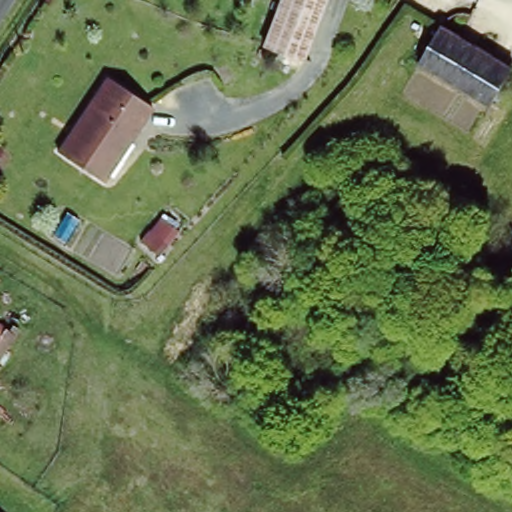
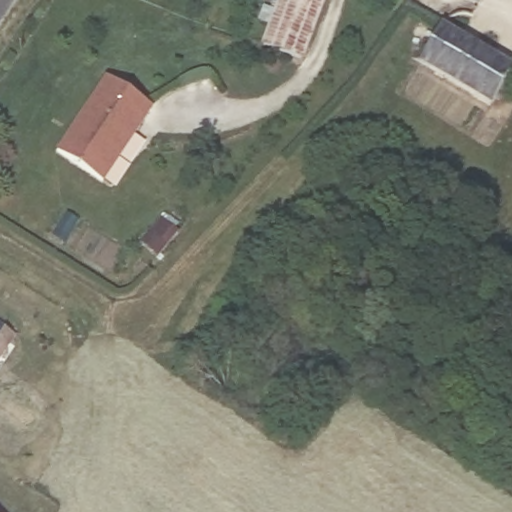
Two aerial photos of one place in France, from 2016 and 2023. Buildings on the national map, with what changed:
unchanged [(258,49),(276,0),(320,0),(297,64),(258,49)]
unchanged [(512,65),(492,104),(418,62),(441,22),(512,65)]
unchanged [(88,176),(52,153),(103,77),(149,107),(130,135),(98,183),(88,176)]
unchanged [(15,342),(0,366),(0,331),(15,342)]

